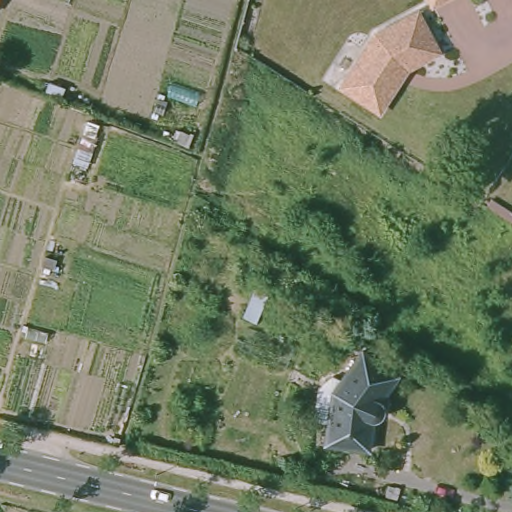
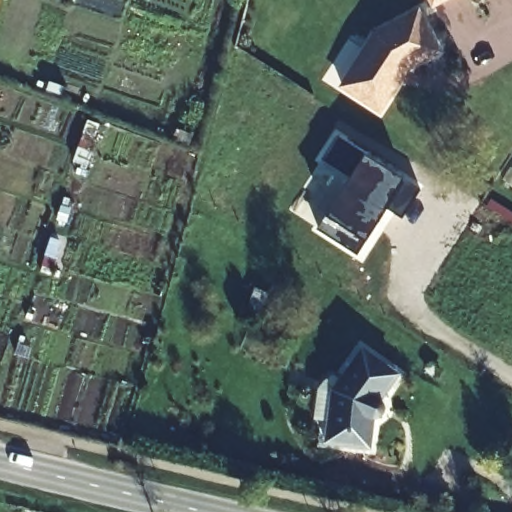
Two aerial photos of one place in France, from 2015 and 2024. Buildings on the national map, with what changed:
unchanged [(428,5),(425,0),(436,0),(428,5)]
unchanged [(440,46),(410,64),(382,108),(345,84),(378,32),(418,8),(440,46)]
new [(338,134),(366,154),(404,180),(420,189),(402,218),(387,208),(366,240),(356,255),(317,228),(327,214),(350,178),(322,159),(338,134)]
unchanged [(335,377),(357,349),(388,372),(373,396),(374,400),(374,407),(367,416),(363,445),(319,440),(322,420),(306,418),(311,383),(323,374),(335,377)]

